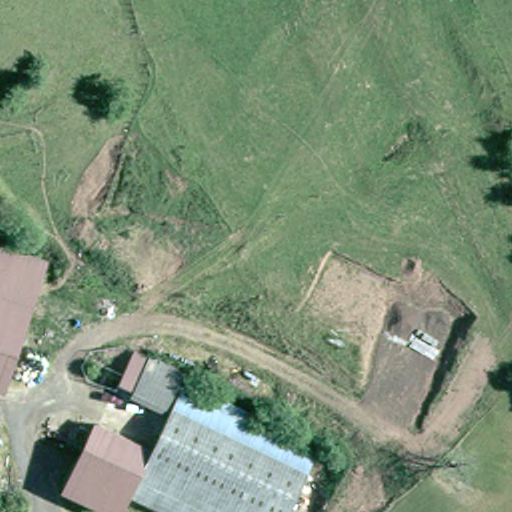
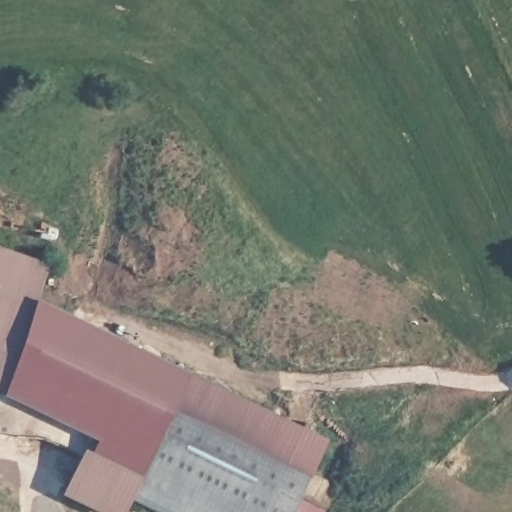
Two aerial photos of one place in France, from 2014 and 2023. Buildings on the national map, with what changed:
unchanged [(5,397),(0,395),(0,245),(50,263),(5,397)]
new [(182,378),(167,412),(150,447),(95,422),(89,433),(5,397),(38,299),(327,437),(301,497),(327,511),(326,512),(287,512),(320,444),(182,378)]
unchanged [(287,512),(168,512),(127,492),(135,476),(167,412),(182,378),(320,444),(287,512)]
new [(135,476),(80,450),(95,422),(150,447),(135,476)]
unchanged [(80,450),(135,476),(127,492),(118,512),(116,512),(63,487),(80,450)]

